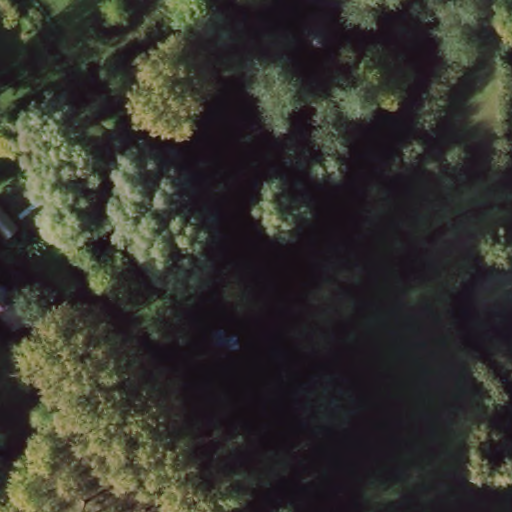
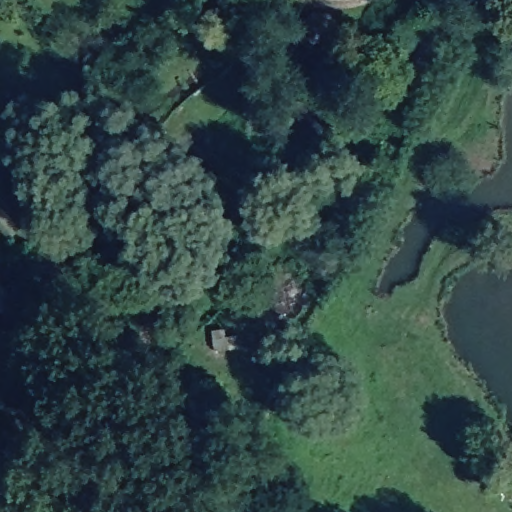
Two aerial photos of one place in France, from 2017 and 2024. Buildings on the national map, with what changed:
unchanged [(22,326),(25,324),(37,313),(46,325),(35,335),(32,338),(22,326)]
unchanged [(80,368),(106,394),(98,403),(70,377),(80,368)]
unchanged [(8,474),(0,485),(0,467),(8,474)]

